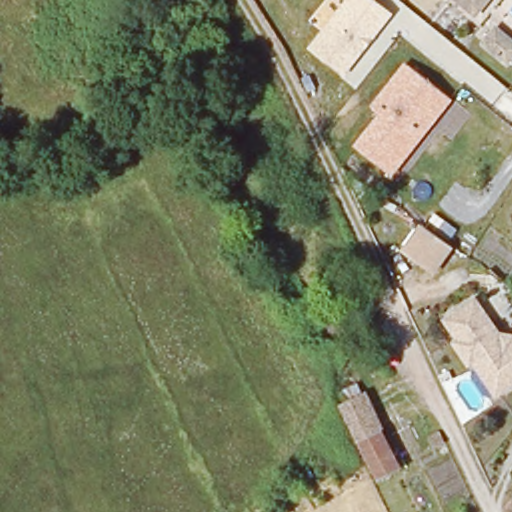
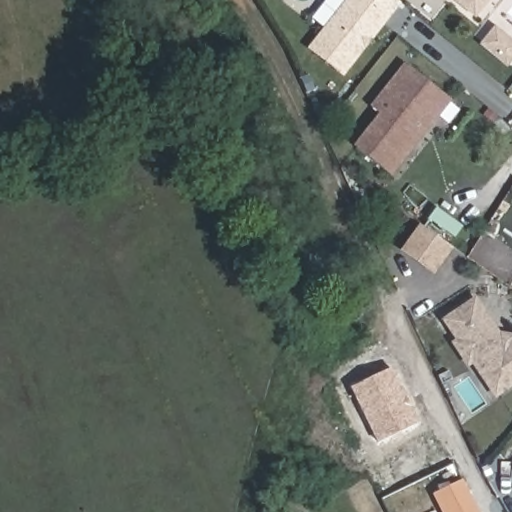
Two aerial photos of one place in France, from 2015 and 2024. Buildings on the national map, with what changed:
unchanged [(393,14),(344,78),(306,49),(345,0),(374,0),(393,14)]
unchanged [(462,7),(455,0),(492,0),(490,2),(475,19),(462,7)]
unchanged [(512,44),(512,61),(508,65),(487,45),(500,33),(512,44)]
unchanged [(453,99),(391,177),(354,145),(378,111),(370,104),(405,62),(453,99)]
unchanged [(437,276),(401,252),(420,224),(455,248),(437,276)]
unchanged [(505,347),(512,341),(512,386),(495,398),(474,364),(465,363),(455,346),(456,340),(443,322),(474,302),(505,347)]
new [(393,368),(420,423),(377,443),(350,388),(393,368)]
demolished [(398,469),(375,480),(356,442),(379,431),(398,469)]
demolished [(446,458),(433,463),(425,449),(439,444),(446,458)]
new [(442,512),(433,495),(463,479),(480,512),(442,512)]
unchanged [(500,512),(512,500),(512,512),(500,512)]

